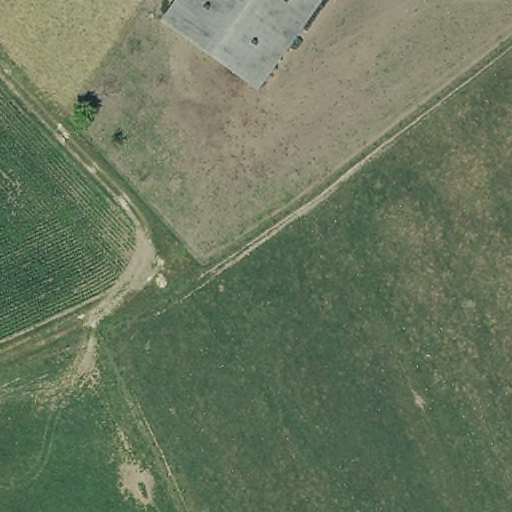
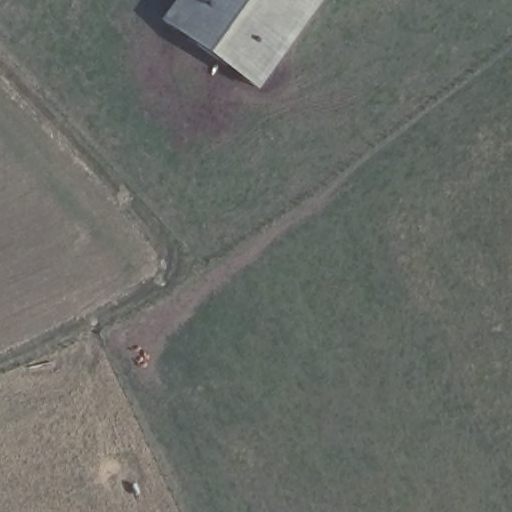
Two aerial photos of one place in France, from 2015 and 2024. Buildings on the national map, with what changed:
unchanged [(256,89),(162,22),(178,0),(319,0),(256,89)]

